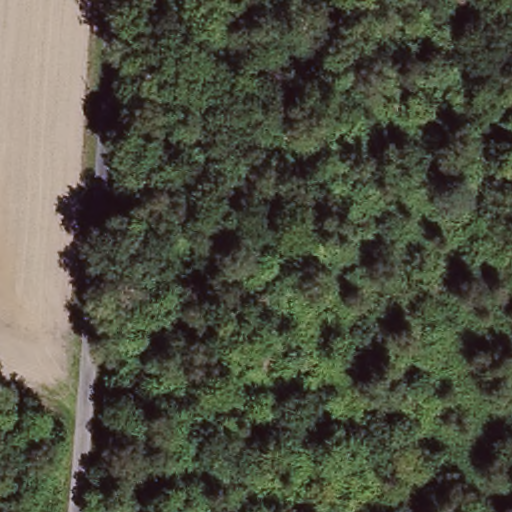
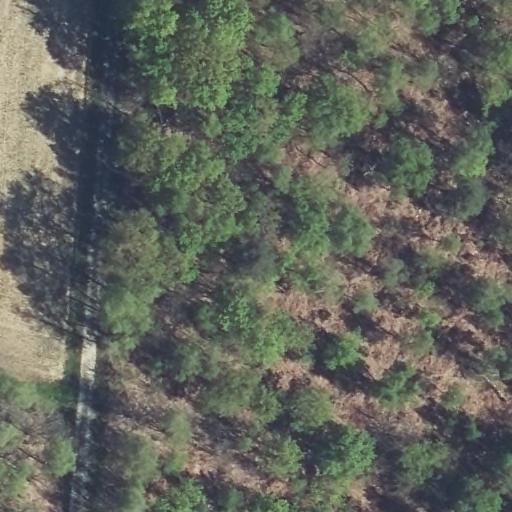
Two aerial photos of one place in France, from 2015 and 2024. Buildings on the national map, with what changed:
[]

